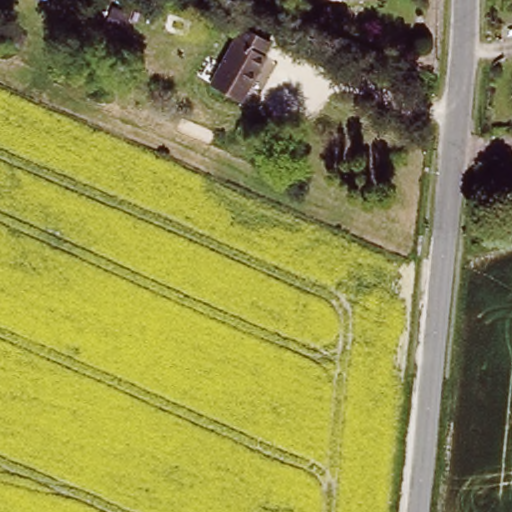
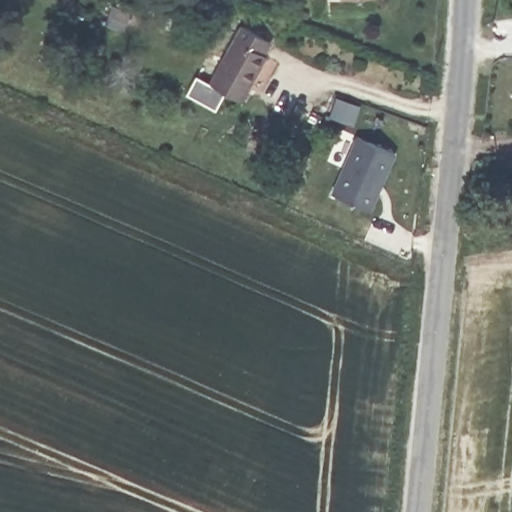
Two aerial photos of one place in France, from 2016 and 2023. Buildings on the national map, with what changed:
new [(116,7),(132,14),(126,32),(109,26),(116,7)]
unchanged [(214,84),(245,27),(273,42),(267,55),(269,55),(245,100),(214,84)]
new [(355,137),(395,154),(370,211),(329,193),(355,137)]

